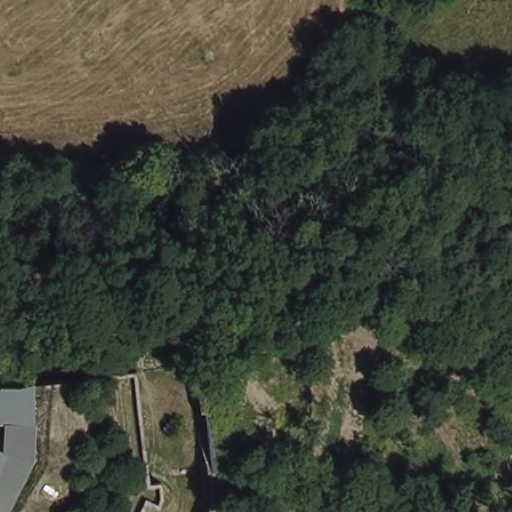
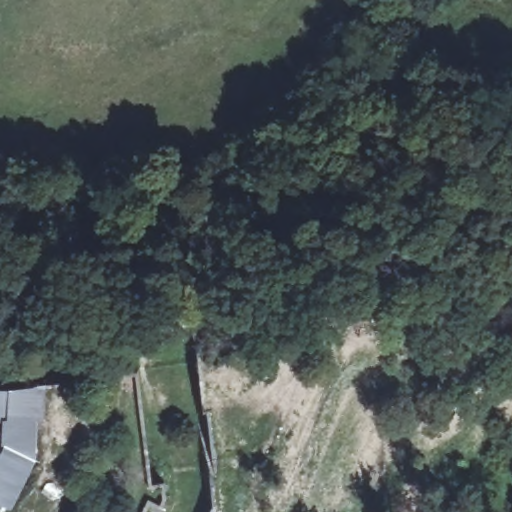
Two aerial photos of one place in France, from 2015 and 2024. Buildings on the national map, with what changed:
unchanged [(36,467),(17,512),(0,512),(0,460),(6,447),(7,422),(0,421),(0,390),(37,387),(36,467)]

